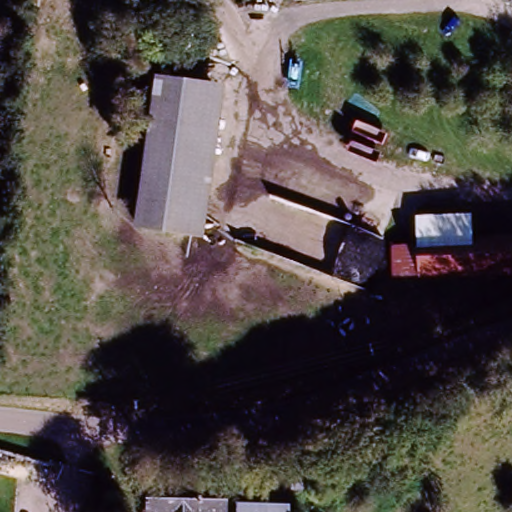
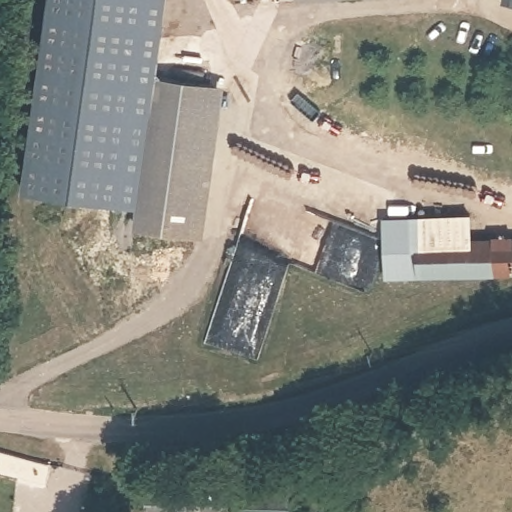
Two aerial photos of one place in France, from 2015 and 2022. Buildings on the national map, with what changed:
new [(138,212),(18,192),(46,0),(164,0),(155,74),(137,223),(138,212)]
unchanged [(499,2),(499,0),(512,0),(512,5),(499,2)]
unchanged [(137,223),(155,74),(221,83),(201,232),(137,223)]
unchanged [(418,210),(471,211),(471,240),(417,238),(418,210)]
unchanged [(390,274),(390,237),(417,238),(418,275),(390,274)]
unchanged [(418,275),(417,238),(471,240),(512,242),(512,279),(418,275)]
unchanged [(141,512),(141,485),(194,486),(194,475),(212,475),(212,486),(218,486),(218,512),(141,512)]
unchanged [(310,492),(285,493),(285,512),(241,512),(241,496),(254,496),(254,479),(309,479),(310,492)]

